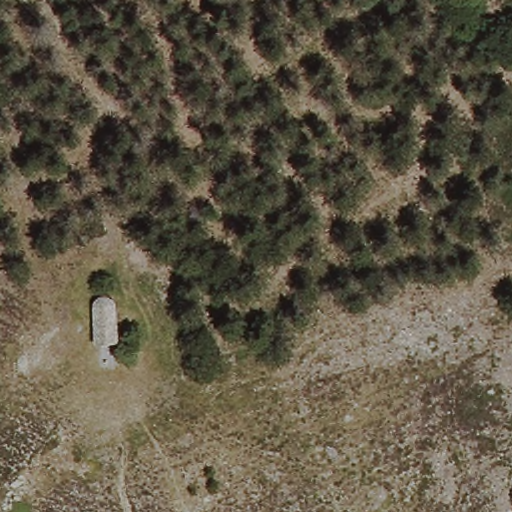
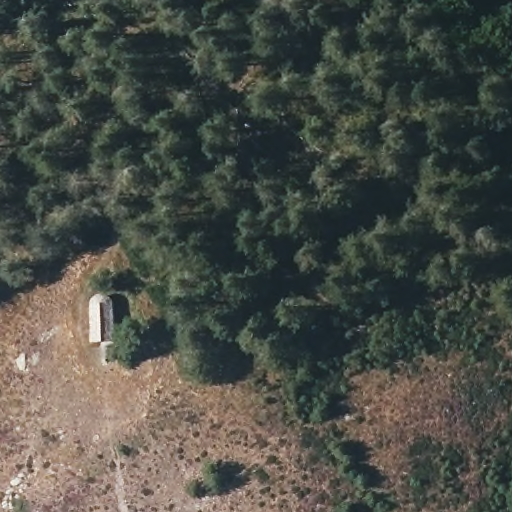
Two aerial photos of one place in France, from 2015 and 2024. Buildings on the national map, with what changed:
unchanged [(116,306),(123,340),(104,345),(101,307),(116,306)]

